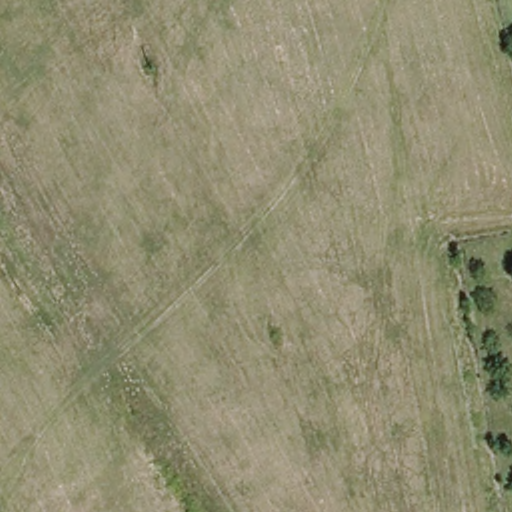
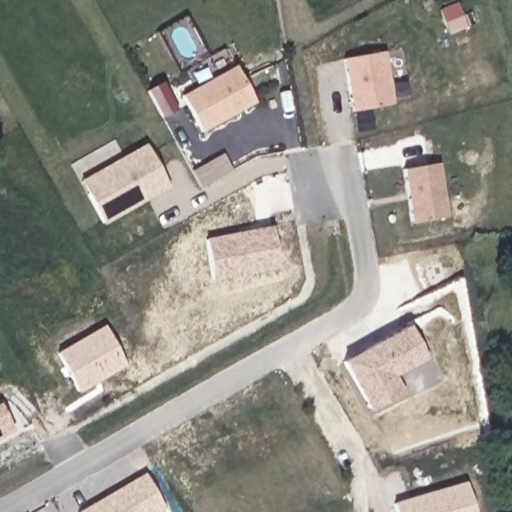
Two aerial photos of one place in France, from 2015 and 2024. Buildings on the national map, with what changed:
new [(388,53),(395,106),(354,112),(347,60),(388,53)]
new [(237,65),(257,101),(203,130),(183,94),(237,65)]
new [(149,145),(172,185),(106,221),(91,193),(84,181),(95,175),(149,145)]
new [(440,164),(450,216),(415,224),(405,170),(440,164)]
new [(280,269),(213,282),(202,239),(271,225),(280,269)]
new [(126,365),(78,393),(54,352),(104,325),(126,365)]
new [(403,392),(371,410),(342,362),(407,325),(425,358),(394,375),(403,392)]
new [(14,430),(0,438),(0,406),(14,430)]
new [(145,473),(165,508),(159,512),(75,512),(145,473)]
new [(463,482),(472,512),(394,512),(392,503),(463,482)]

